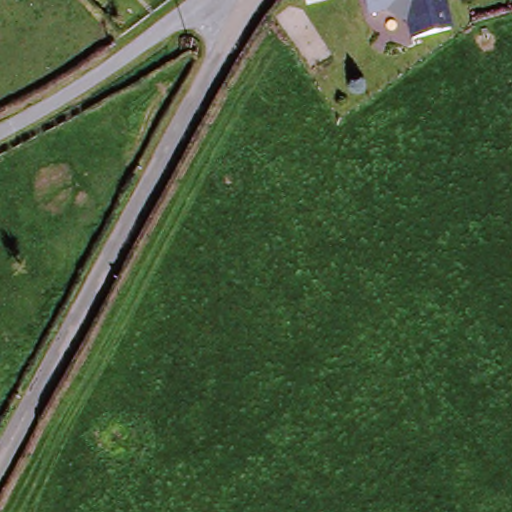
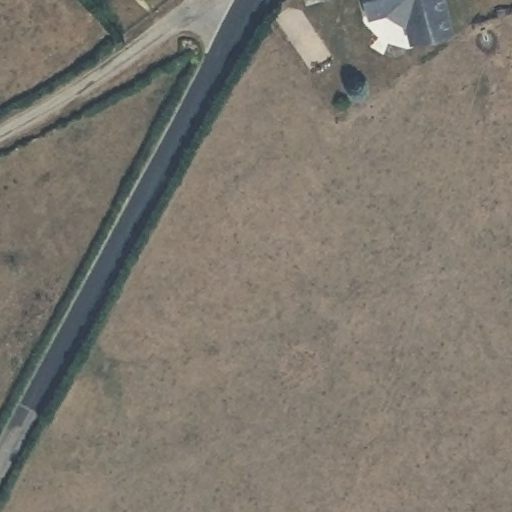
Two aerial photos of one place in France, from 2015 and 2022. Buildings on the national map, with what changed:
unchanged [(453,39),(412,50),(406,31),(388,18),(369,24),(363,0),(443,0),(453,39)]

